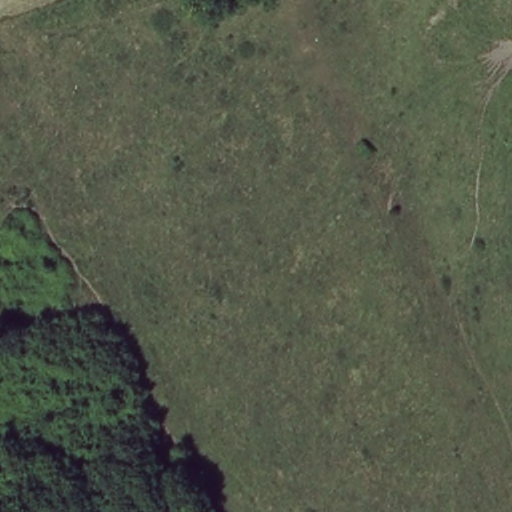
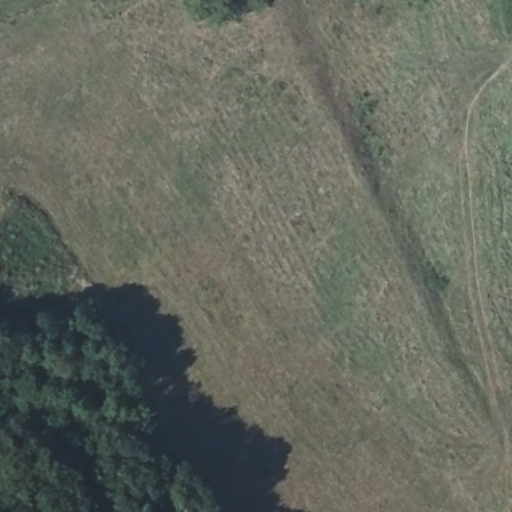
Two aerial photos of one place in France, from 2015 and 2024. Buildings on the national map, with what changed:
[]

